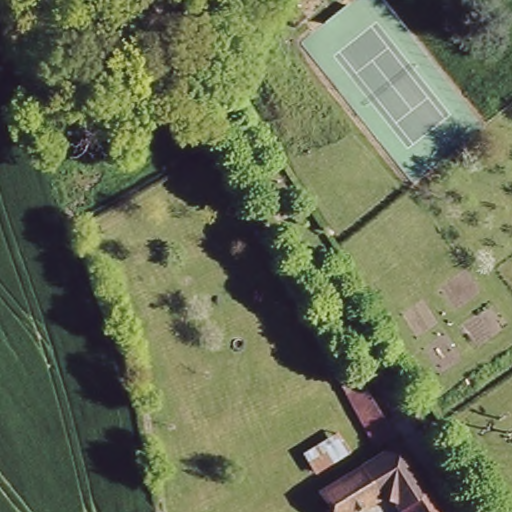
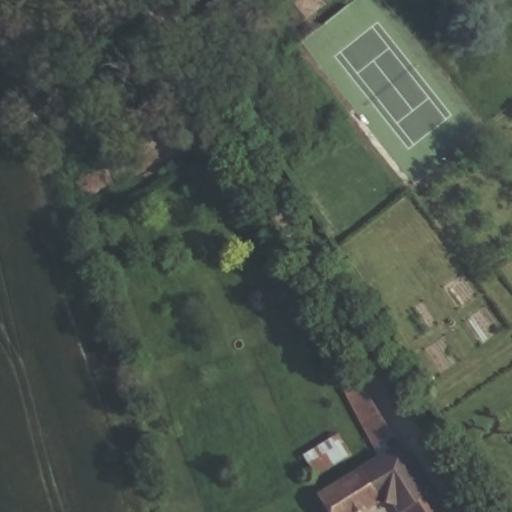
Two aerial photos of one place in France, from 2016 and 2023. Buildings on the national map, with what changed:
unchanged [(345,391),(365,380),(395,433),(375,444),(345,391)]
unchanged [(446,512),(398,512),(382,487),(346,512),(330,512),(316,491),(402,443),(446,512)]

